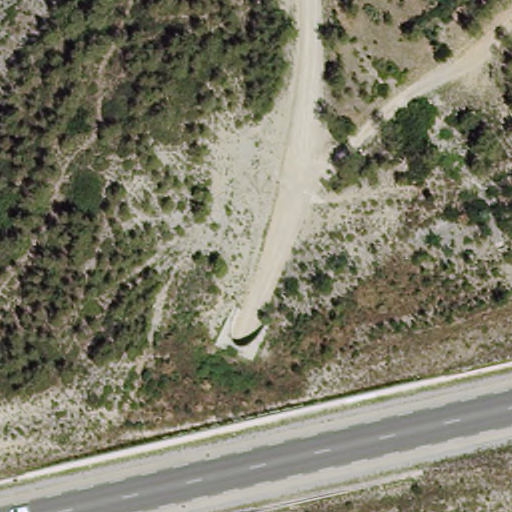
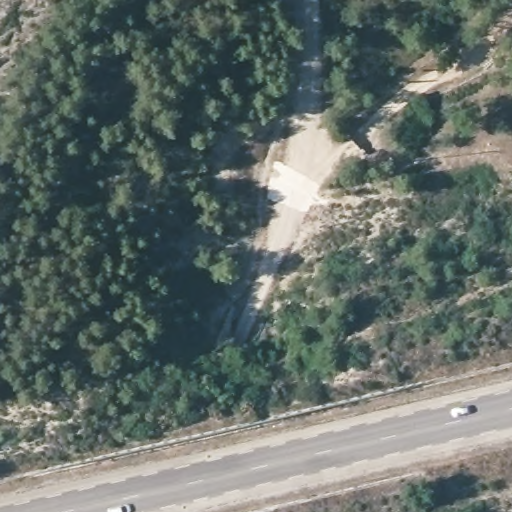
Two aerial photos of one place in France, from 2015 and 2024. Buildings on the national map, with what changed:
[]

